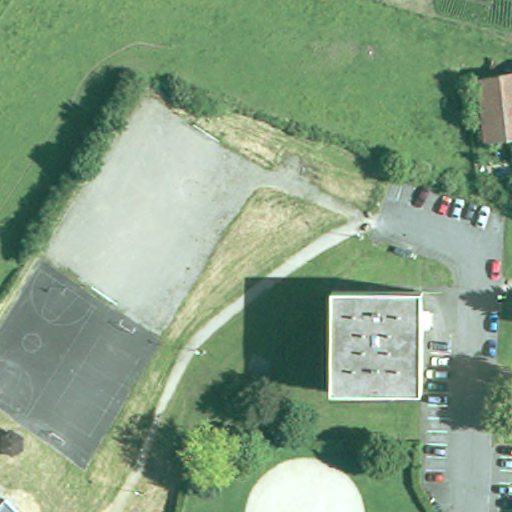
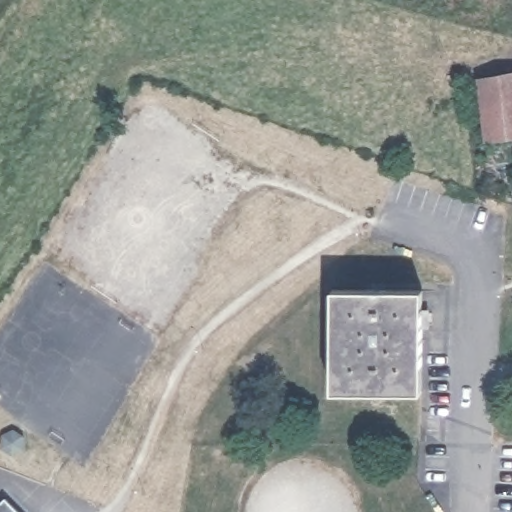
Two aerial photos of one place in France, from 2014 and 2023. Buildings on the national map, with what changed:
unchanged [(512,78),(512,143),(488,146),(480,84),(512,78)]
unchanged [(332,291),(421,292),(421,395),(333,395),(332,291)]
unchanged [(5,498),(19,512),(0,512),(0,503),(5,498)]

